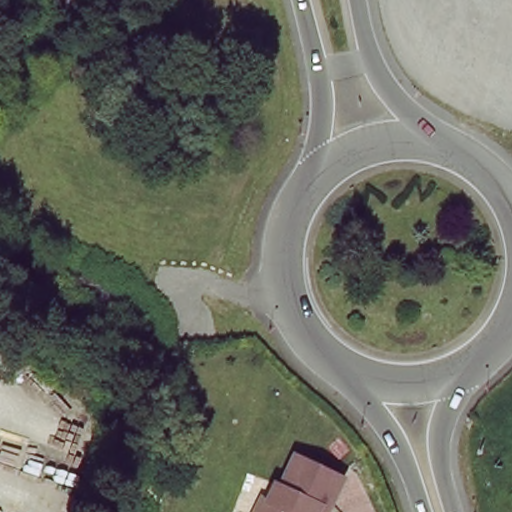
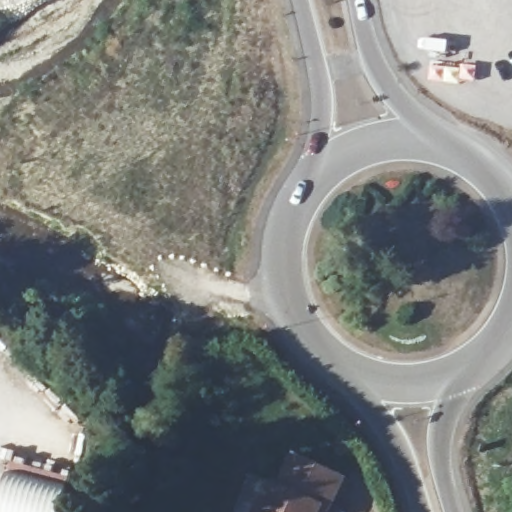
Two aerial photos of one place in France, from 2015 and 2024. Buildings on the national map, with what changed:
unchanged [(261,497),(267,501),(275,484),(280,487),(296,456),(343,481),(327,512),(253,512),(261,497)]
new [(10,462),(70,476),(61,512),(0,512),(0,501),(10,462)]

